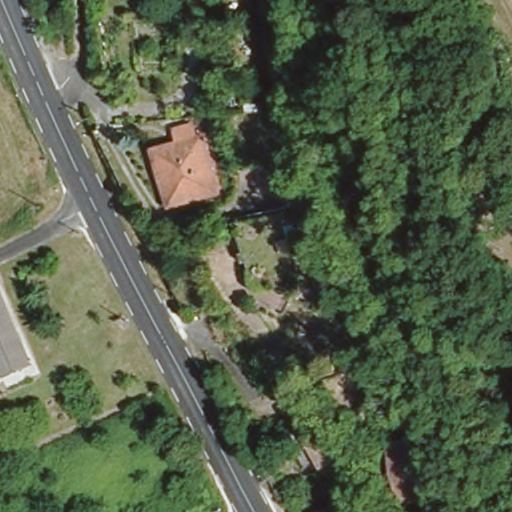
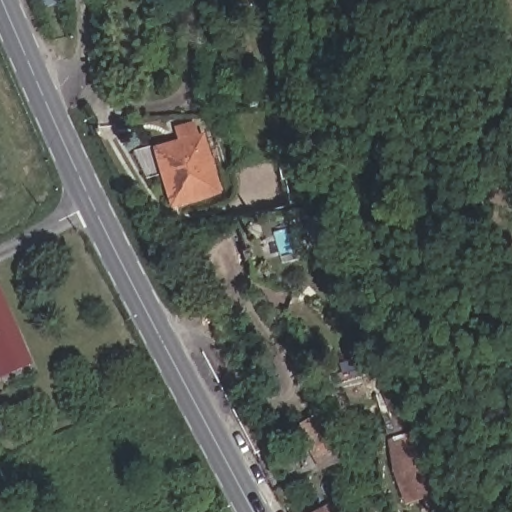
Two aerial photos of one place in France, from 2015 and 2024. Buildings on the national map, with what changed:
unchanged [(35,0),(54,0),(56,5),(46,8),(39,10),(35,0)]
unchanged [(160,159),(152,134),(200,122),(209,154),(160,159)]
unchanged [(273,152),(313,138),(325,192),(287,203),(273,152)]
unchanged [(217,175),(169,189),(160,159),(209,154),(217,175)]
unchanged [(0,371),(0,299),(27,360),(0,371)]
unchanged [(257,441),(244,413),(271,401),(283,428),(257,441)]
unchanged [(319,409),(350,456),(318,470),(292,429),(319,409)]
unchanged [(423,445),(437,503),(417,512),(405,512),(393,477),(389,448),(421,438),(423,445)]
unchanged [(172,478),(194,467),(209,495),(187,507),(172,478)]
unchanged [(321,505),(325,512),(309,512),(321,505)]
unchanged [(340,510),(341,512),(337,512),(340,510)]

